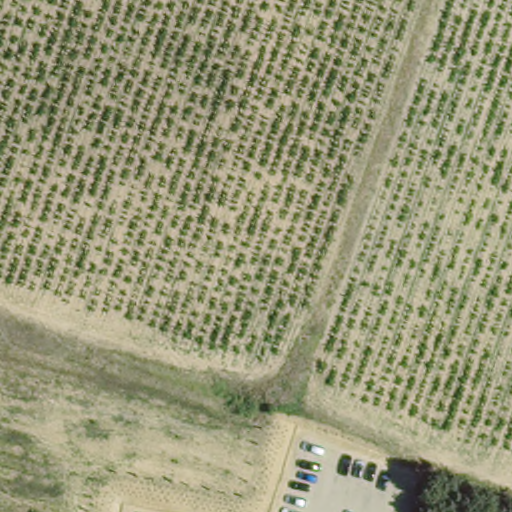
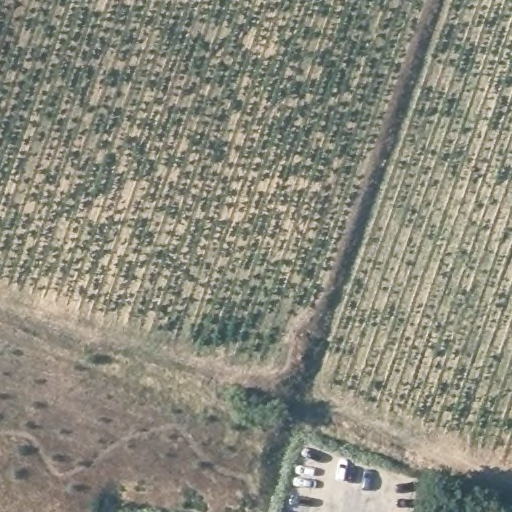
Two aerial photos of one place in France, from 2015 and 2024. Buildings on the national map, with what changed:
[]

